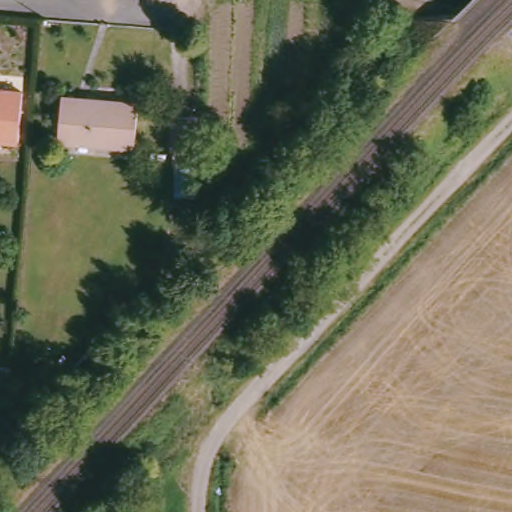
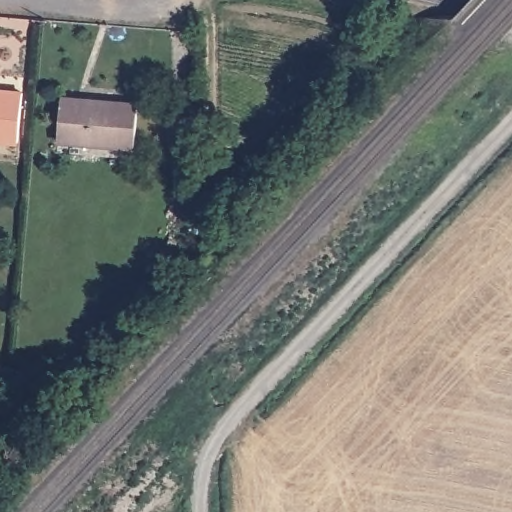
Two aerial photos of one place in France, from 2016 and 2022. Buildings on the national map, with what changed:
unchanged [(19,143),(0,141),(0,92),(22,95),(19,143)]
unchanged [(139,104),(135,148),(58,140),(62,98),(139,104)]
unchanged [(202,109),(202,198),(177,199),(174,156),(170,154),(171,114),(202,109)]
unchanged [(10,397),(0,396),(0,370),(12,371),(10,397)]

